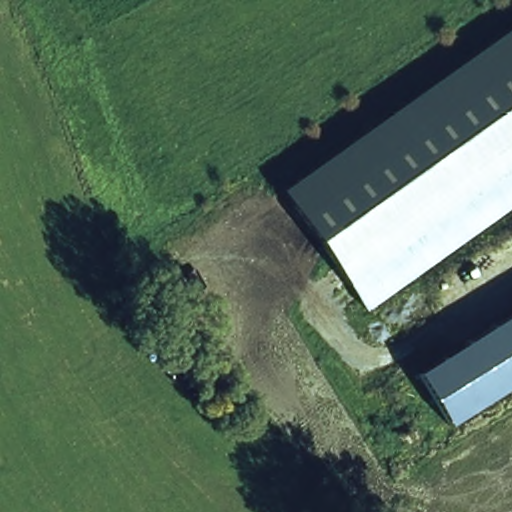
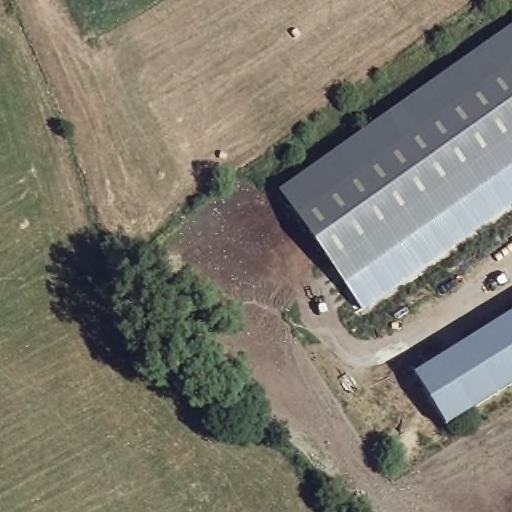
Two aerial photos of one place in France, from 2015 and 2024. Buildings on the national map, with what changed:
unchanged [(512,24),(512,204),(361,311),(342,285),(277,191),(512,24)]
unchanged [(447,428),(415,375),(512,314),(512,388),(447,428)]

